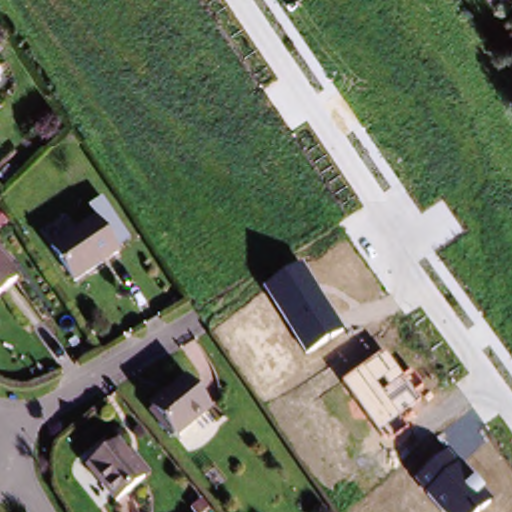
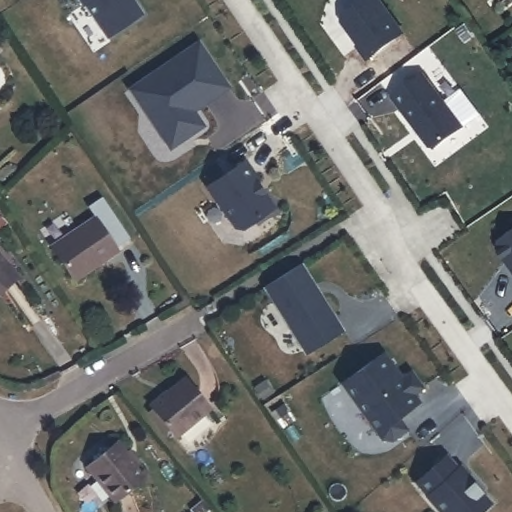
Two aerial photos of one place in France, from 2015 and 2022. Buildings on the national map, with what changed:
new [(79,6),(74,0),(127,0),(137,15),(102,39),(80,5),(79,6)]
new [(357,45),(337,18),(361,0),(375,0),(400,34),(364,60),(354,47),(357,45)]
unchanged [(511,0),(512,0),(512,2),(511,0)]
new [(230,86),(195,111),(204,125),(167,150),(125,88),(197,39),(230,86)]
new [(390,97),(420,74),(460,128),(429,151),(390,97)]
new [(242,161),(254,179),(252,180),(271,208),(240,230),(232,228),(205,187),(242,161)]
unchanged [(112,252),(70,280),(49,249),(90,220),(112,252)]
new [(496,242),(512,231),(512,274),(510,270),(511,269),(505,261),(504,262),(495,250),(496,242)]
unchanged [(0,295),(0,260),(16,281),(0,295)]
unchanged [(262,286),(300,262),(342,330),(304,352),(262,286)]
unchanged [(342,381),(384,351),(402,378),(412,370),(423,387),(414,395),(420,403),(377,435),(342,381)]
unchanged [(202,405),(167,433),(147,408),(180,380),(202,405)]
unchanged [(144,480),(114,506),(84,470),(114,445),(144,480)]
unchanged [(414,480),(445,451),(490,501),(479,512),(443,512),(414,480)]

